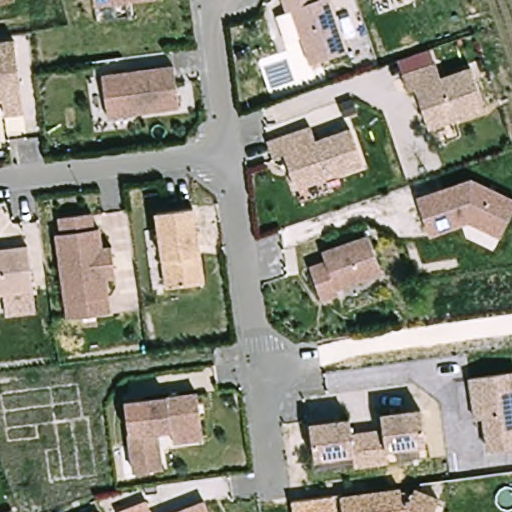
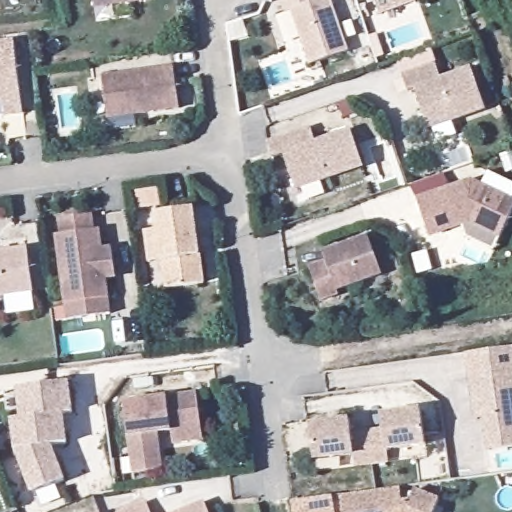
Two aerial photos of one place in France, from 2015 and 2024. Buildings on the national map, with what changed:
unchanged [(94,7),(93,0),(146,0),(131,2),(94,7)]
unchanged [(301,37),(291,10),(286,12),(282,0),(316,0),(318,0),(329,0),(348,51),(310,65),(301,37)]
unchanged [(13,40),(22,111),(3,114),(2,99),(0,99),(0,42),(13,40)]
unchanged [(435,64),(440,79),(471,68),(485,109),(452,120),(428,129),(414,89),(407,91),(402,75),(435,64)]
unchanged [(173,66),(179,109),(107,118),(102,76),(173,66)]
unchanged [(310,127),(315,141),(350,130),(363,165),(328,177),(295,189),(283,154),(272,158),(266,142),(310,127)]
unchanged [(512,199),(512,213),(500,237),(469,222),(430,235),(416,199),(471,180),(512,199)]
unchanged [(167,288),(157,214),(193,209),(203,283),(167,288)]
unchanged [(78,318),(68,320),(56,235),(61,234),(59,219),(92,214),(94,230),(99,229),(102,249),(105,249),(112,247),(116,277),(109,278),(106,278),(108,297),(110,313),(78,318)]
unchanged [(369,236),(382,274),(337,290),(338,295),(321,300),(310,267),(326,262),(323,252),(369,236)]
unchanged [(27,247),(33,291),(0,296),(0,251),(27,247)]
unchanged [(476,416),(475,391),(473,374),(512,372),(512,446),(487,447),(485,415),(476,416)]
new [(69,381),(73,412),(63,415),(68,442),(52,446),(66,481),(32,495),(14,450),(10,420),(20,418),(15,388),(69,381)]
unchanged [(174,443),(172,430),(157,432),(162,470),(134,473),(125,403),(198,394),(202,427),(204,439),(174,443)]
unchanged [(385,430),(383,415),(422,410),(427,445),(388,450),(390,461),(373,463),(369,431),(385,430)]
unchanged [(351,419),(353,434),(369,431),(373,463),(356,465),(355,454),(316,459),(311,424),(351,419)]
unchanged [(338,496),(398,488),(398,491),(411,490),(436,499),(431,512),(340,512),(338,496)]
unchanged [(330,495),(332,512),(290,512),(288,500),(330,495)]
unchanged [(209,512),(178,512),(204,501),(209,512)]
unchanged [(151,512),(120,512),(147,502),(151,512)]

